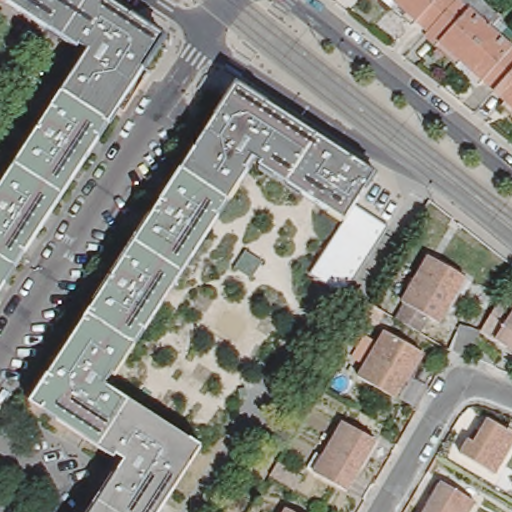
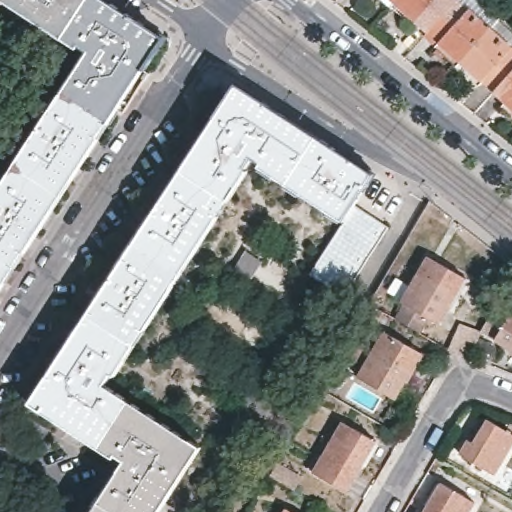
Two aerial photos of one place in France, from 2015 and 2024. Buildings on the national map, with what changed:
unchanged [(87,55),(2,0),(99,0),(159,39),(0,284),(0,190),(87,55)]
unchanged [(420,12),(415,17),(397,0),(452,0),(432,22),(420,12)]
unchanged [(499,12),(490,21),(459,57),(437,37),(442,32),(432,22),(452,0),(494,0),(502,7),(499,12)]
unchanged [(512,65),(497,82),(485,71),(481,76),(459,57),(490,21),(499,12),(512,23),(512,35),(509,37),(512,40),(512,65)]
unchanged [(508,92),(497,82),(512,65),(512,104),(503,97),(508,92)]
unchanged [(370,176),(371,177),(372,178),(372,180),(371,181),(354,210),(345,223),(252,162),(105,389),(197,450),(157,512),(95,512),(125,465),(32,405),(236,90),(370,176)]
unchanged [(389,232),(344,300),(309,277),(343,226),(345,223),(354,210),(389,232)]
unchanged [(405,303),(409,298),(406,297),(434,252),(470,274),(443,318),(437,315),(433,321),(405,303)]
unchanged [(396,382),(400,385),(392,398),(358,380),(385,335),(414,352),(396,382)]
unchanged [(512,335),(512,347),(506,344),(512,335)]
unchanged [(475,365),(483,339),(505,346),(497,372),(477,365),(475,365)]
unchanged [(362,460),(367,463),(350,491),(317,471),(347,418),(376,436),(362,460)]
unchanged [(511,427),(512,427),(512,452),(496,479),(459,457),(467,444),(474,432),(481,435),(488,423),(507,433),(511,427)]
unchanged [(287,482),(282,479),(269,471),(275,460),(289,468),(293,471),(287,482)]
unchanged [(467,512),(425,512),(443,482),(474,501),(467,512)]

